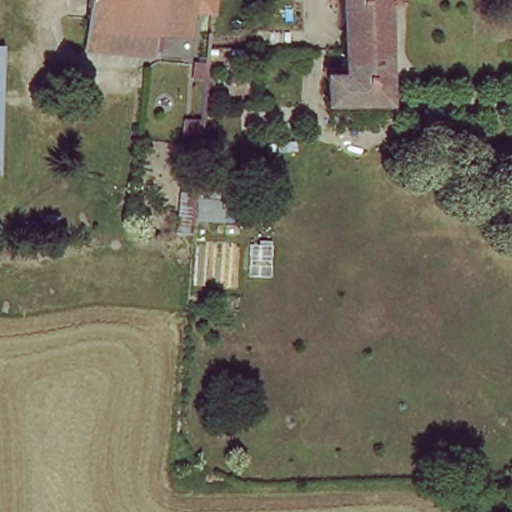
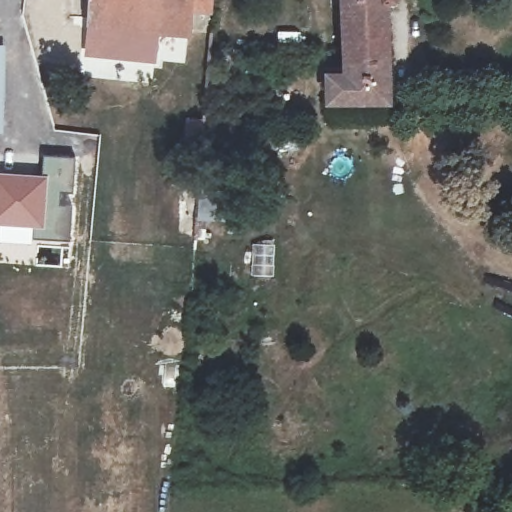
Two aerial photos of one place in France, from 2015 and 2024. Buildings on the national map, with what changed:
unchanged [(107,42),(83,40),(85,20),(87,0),(187,0),(183,27),(147,24),(145,45),(107,42)]
unchanged [(384,95),(323,94),(323,69),(341,69),(340,0),(384,0),(384,95)]
new [(35,230),(44,231),(47,175),(41,174),(43,155),(76,157),(74,194),(62,193),(62,204),(71,202),(70,245),(33,245),(35,230)]
new [(41,174),(47,175),(44,231),(35,230),(33,245),(0,243),(0,172),(41,174)]
unchanged [(192,193),(192,188),(192,182),(199,182),(198,194),(192,193)]

